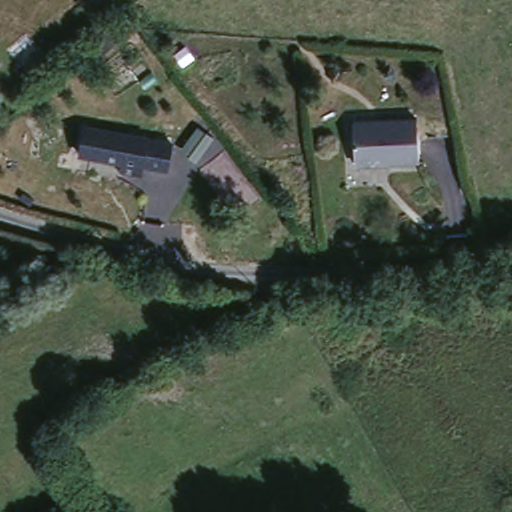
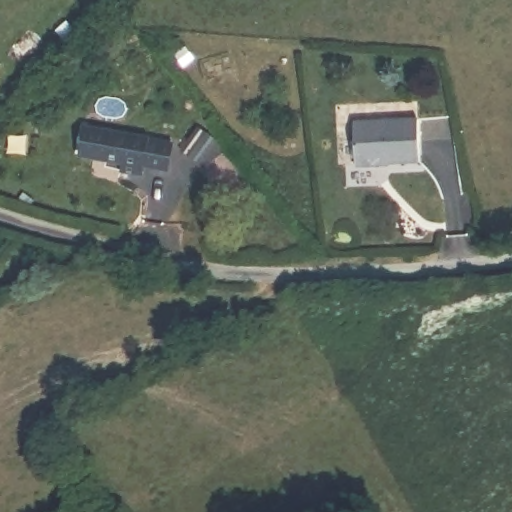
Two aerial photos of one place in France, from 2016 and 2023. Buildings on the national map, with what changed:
unchanged [(418,119),(419,161),(355,162),(354,120),(418,119)]
unchanged [(176,137),(174,163),(148,161),(147,168),(127,167),(129,159),(85,155),(87,129),(176,137)]

